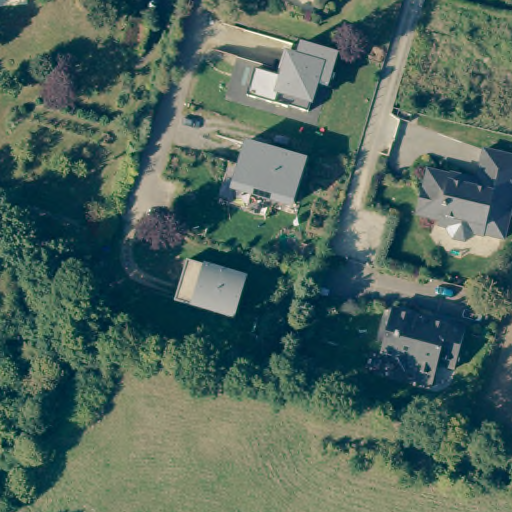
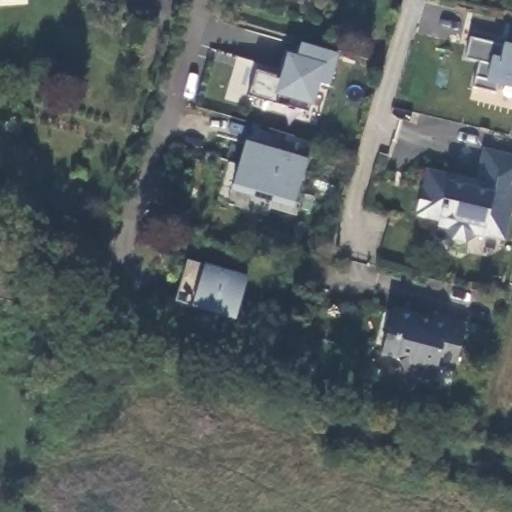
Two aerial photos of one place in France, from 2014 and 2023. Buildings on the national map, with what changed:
unchanged [(149,26),(141,54),(125,49),(133,21),(149,26)]
new [(497,94),(475,90),(480,62),(466,59),(472,37),(504,44),(512,46),(512,89),(500,86),(497,94)]
unchanged [(257,68),(281,75),(288,52),(298,56),(301,43),(339,53),(330,88),(319,85),(313,106),(309,105),(307,112),(248,96),(257,68)]
unchanged [(307,164),(294,206),(234,187),(246,145),(307,164)]
unchanged [(512,211),(507,234),(489,231),(488,235),(480,233),(474,242),(462,239),(460,232),(441,228),(442,223),(419,218),(420,213),(416,212),(422,187),(425,188),(430,171),(450,176),(451,174),(479,179),(482,165),(485,147),(512,151),(512,211)]
unchanged [(247,280),(234,322),(175,304),(187,263),(247,280)]
unchanged [(457,369),(439,365),(435,384),(415,379),(416,372),(403,369),(397,363),(383,358),(389,331),(383,324),(388,304),(398,298),(421,304),(425,309),(423,316),(437,320),(439,312),(471,320),(457,369)]

